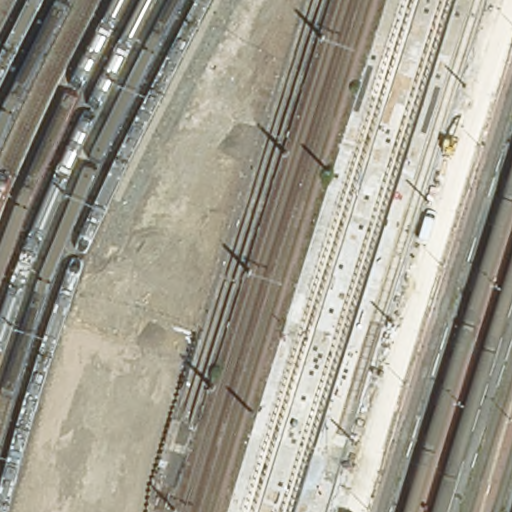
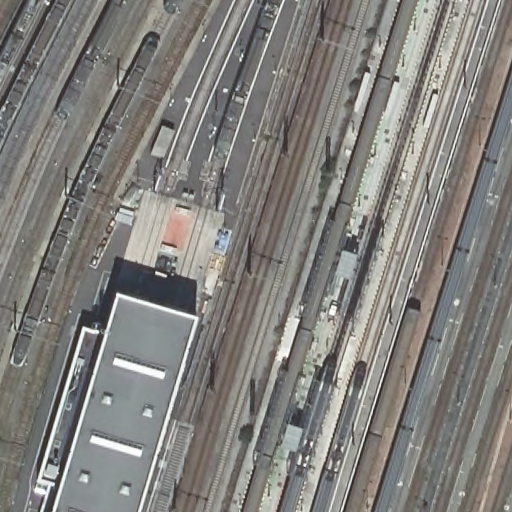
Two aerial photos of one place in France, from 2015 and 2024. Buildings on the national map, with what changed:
new [(59,482),(104,331),(117,287),(196,312),(138,512),(51,512),(59,482)]
new [(104,331),(59,482),(38,477),(84,325),(104,331)]

